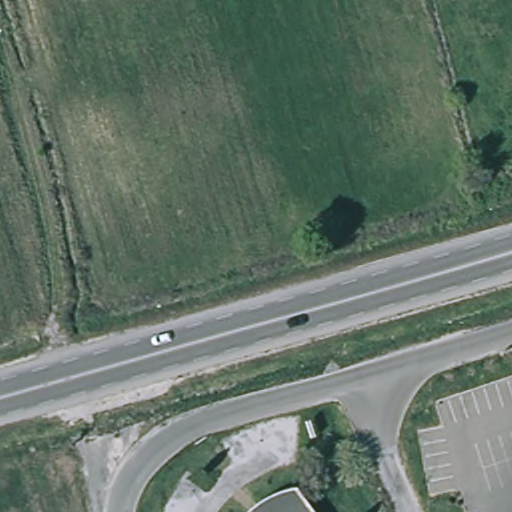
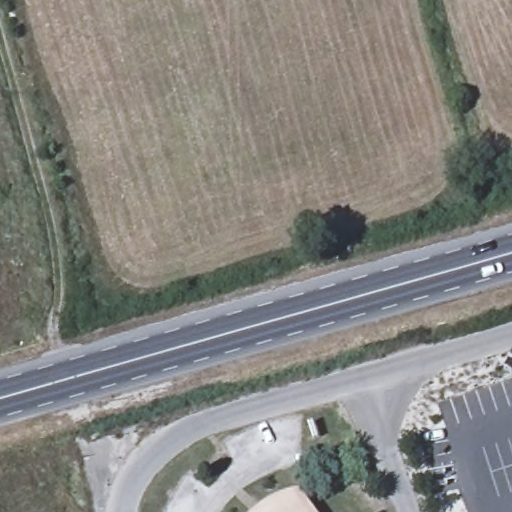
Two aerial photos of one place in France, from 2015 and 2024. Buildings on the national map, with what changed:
unchanged [(259,511),(271,502),(283,496),(294,493),(310,491),(323,512),(258,512),(259,511)]

